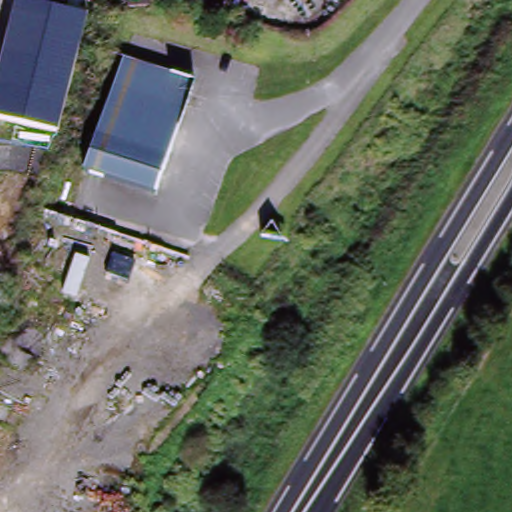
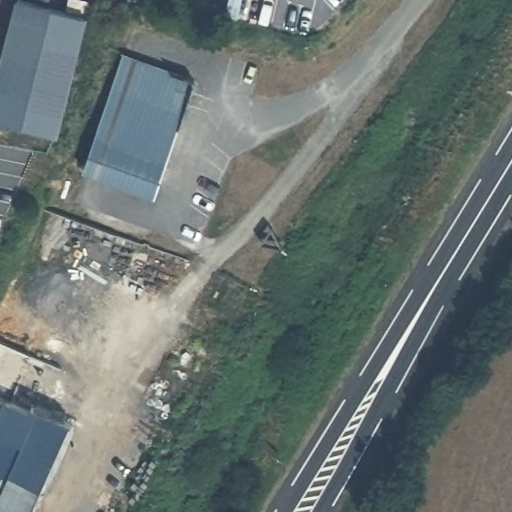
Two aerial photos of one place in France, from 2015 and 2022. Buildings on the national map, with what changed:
unchanged [(0,122),(0,65),(16,0),(18,0),(88,19),(59,137),(0,122)]
unchanged [(153,195),(81,169),(121,54),(194,79),(153,195)]
new [(31,512),(1,512),(0,511),(0,398),(69,427),(31,512)]

